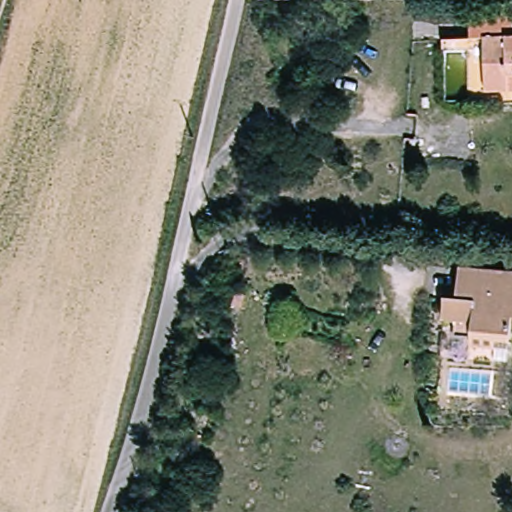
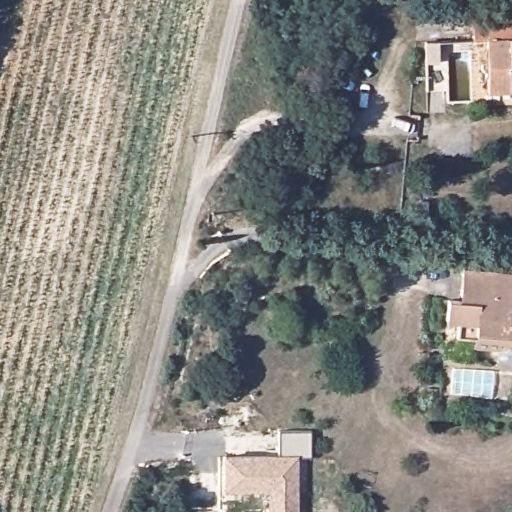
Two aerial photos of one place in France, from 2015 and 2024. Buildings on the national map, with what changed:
unchanged [(498,23),(499,46),(512,45),(512,91),(468,94),(467,73),(465,48),(449,49),(448,26),(498,23)]
unchanged [(450,296),(463,298),(467,266),(512,271),(512,343),(463,338),(464,323),(448,322),(450,296)]
new [(224,455),(279,456),(280,432),(311,432),(311,458),(298,458),(298,512),(268,512),(269,493),(224,493),(224,455)]

